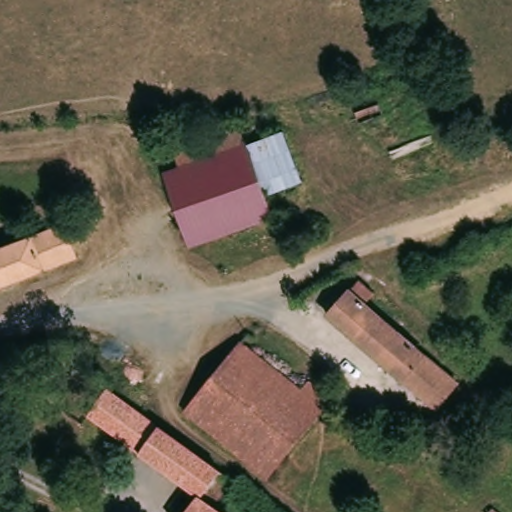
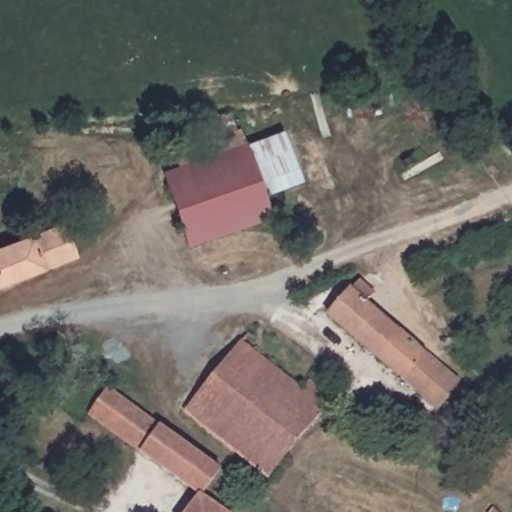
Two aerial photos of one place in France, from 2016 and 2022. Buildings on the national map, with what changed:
unchanged [(277,131),(296,183),(259,197),(239,146),(277,131)]
unchanged [(235,133),(239,146),(259,197),(268,222),(190,253),(155,164),(235,133)]
unchanged [(67,228),(80,261),(0,292),(0,253),(35,240),(67,228)]
unchanged [(351,285),(355,279),(380,303),(381,303),(372,314),(493,406),(482,419),(467,407),(453,424),(321,323),(351,285)]
unchanged [(247,342),(258,331),(292,364),(282,375),(302,393),(311,384),(333,405),(326,414),(267,481),(187,406),(247,342)]
unchanged [(64,417),(81,390),(192,463),(212,476),(196,503),(211,512),(170,512),(181,494),(64,417)]

